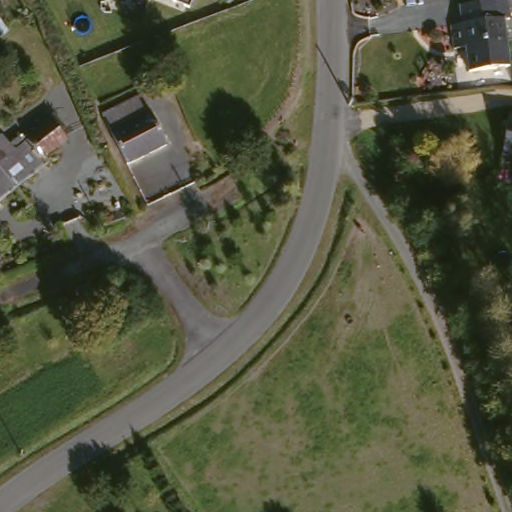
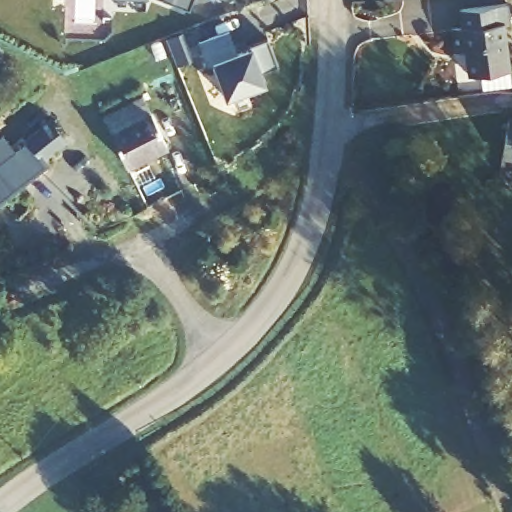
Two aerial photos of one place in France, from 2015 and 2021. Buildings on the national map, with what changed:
unchanged [(170,0),(191,0),(188,7),(170,0)]
unchanged [(512,4),(512,25),(512,72),(475,76),(472,46),(462,46),(460,21),(467,20),(466,7),(512,4)]
new [(228,30),(236,52),(251,46),(266,39),(277,65),(261,72),(266,85),(226,100),(212,63),(208,66),(198,42),(228,30)]
unchanged [(132,169),(106,117),(149,98),(173,150),(132,169)]
unchanged [(512,117),(512,159),(506,159),(510,117),(512,117)]
unchanged [(0,145),(11,137),(21,150),(59,124),(74,142),(49,159),(55,167),(0,212),(0,145)]

